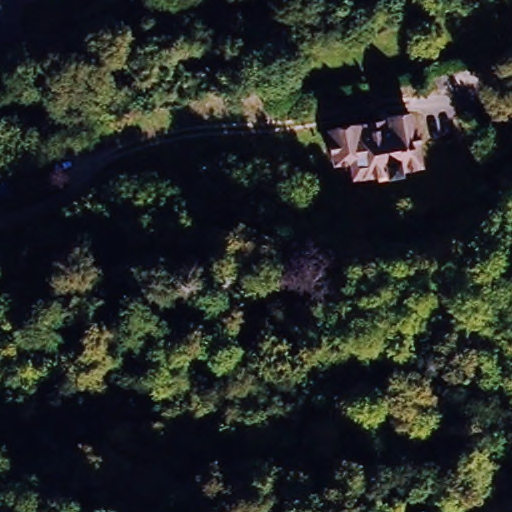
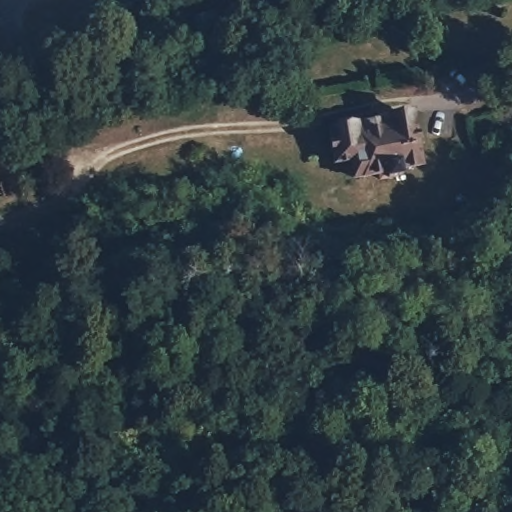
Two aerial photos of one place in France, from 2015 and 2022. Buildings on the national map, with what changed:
unchanged [(412,108),(422,159),(400,162),(402,169),(380,173),(378,167),(354,171),(350,154),(333,157),(327,124),(412,108)]

